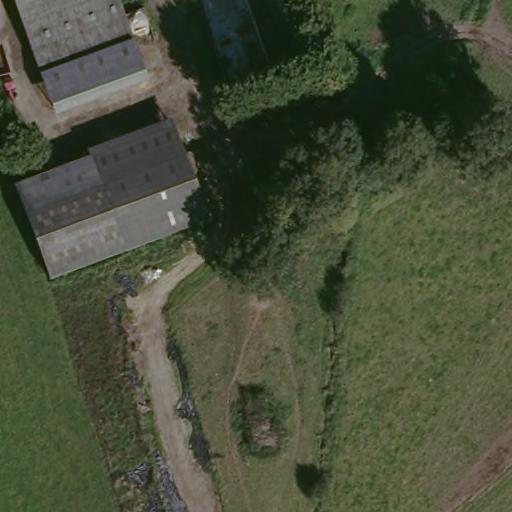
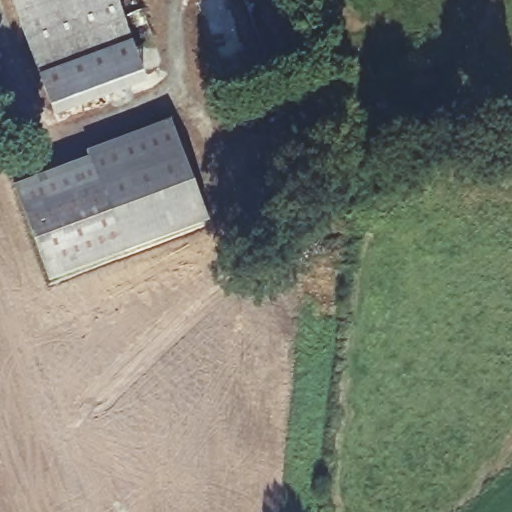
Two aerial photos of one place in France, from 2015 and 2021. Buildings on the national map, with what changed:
unchanged [(117,0),(147,87),(54,113),(13,0),(117,0)]
unchanged [(129,254),(96,160),(94,154),(178,125),(214,223),(129,254)]
unchanged [(129,254),(50,287),(13,190),(96,160),(129,254)]

